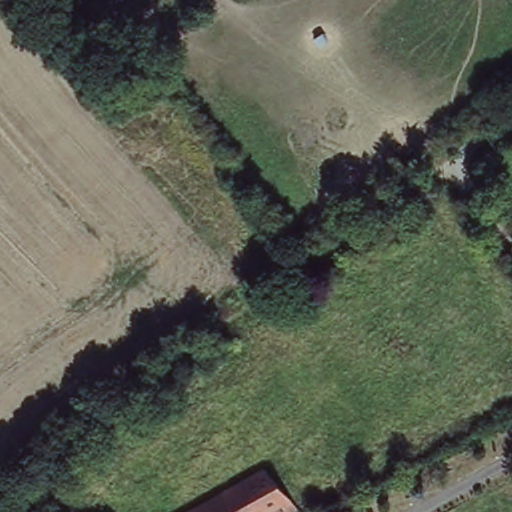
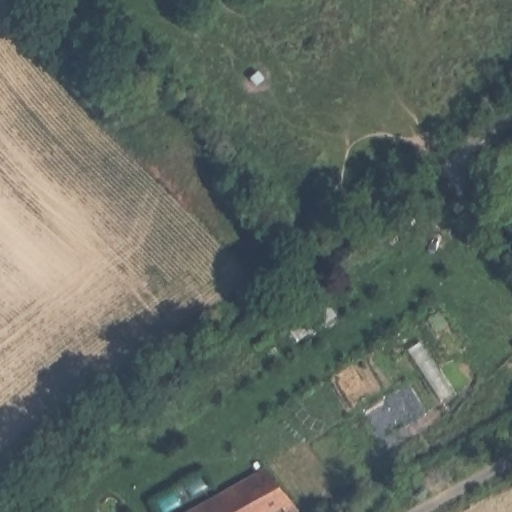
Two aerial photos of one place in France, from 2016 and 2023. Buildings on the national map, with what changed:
unchanged [(275,498),(251,512),(178,512),(265,464),(297,496),(280,506),(275,498)]

